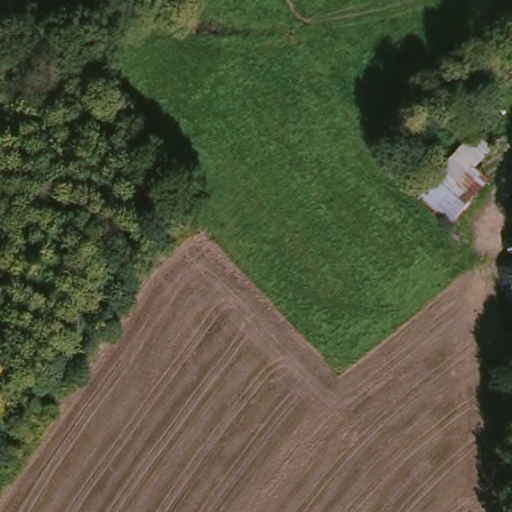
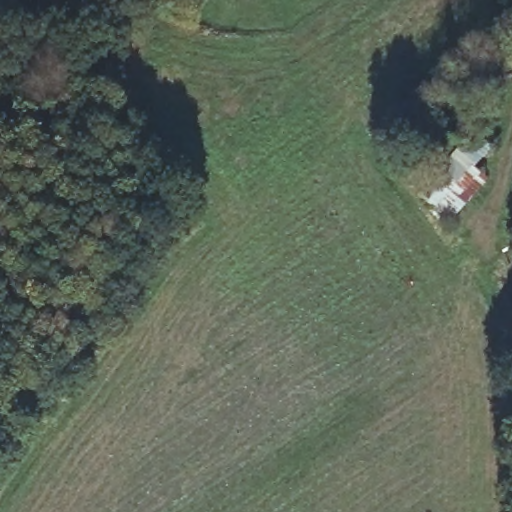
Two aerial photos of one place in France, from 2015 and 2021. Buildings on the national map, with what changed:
unchanged [(491,149),(476,175),(481,179),(453,223),(415,198),(466,130),(491,149)]

